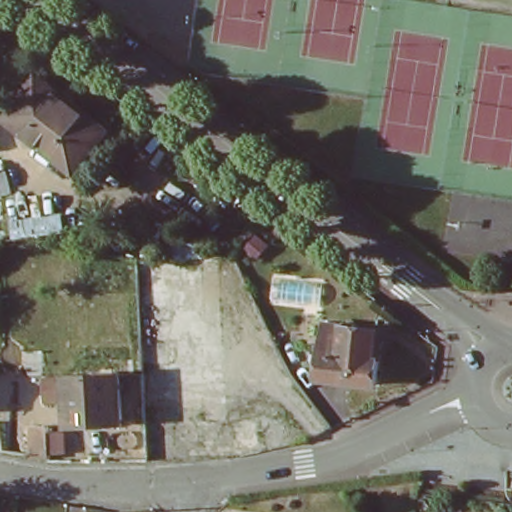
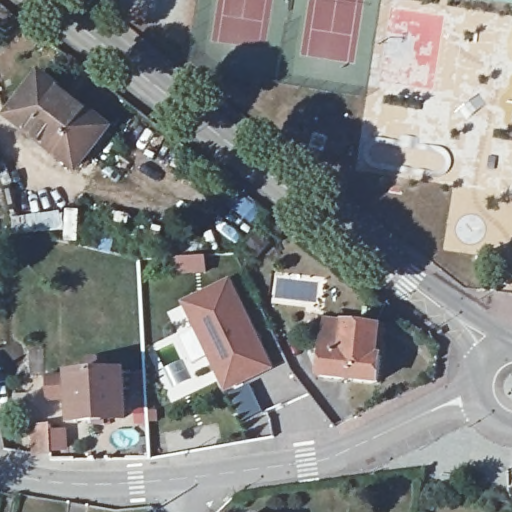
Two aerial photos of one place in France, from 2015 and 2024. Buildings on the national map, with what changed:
unchanged [(78,169),(10,118),(35,86),(41,78),(72,102),(108,130),(78,169)]
new [(230,279),(272,371),(222,393),(204,354),(192,359),(183,342),(196,337),(180,302),(230,279)]
unchanged [(321,378),(327,323),(379,329),(384,330),(382,348),(378,384),(321,378)]
unchanged [(76,376),(128,373),(131,419),(79,422),(78,395),(53,397),(53,383),(76,382),(76,376)]
unchanged [(33,427),(50,426),(50,436),(52,453),(35,455),(33,427)]

